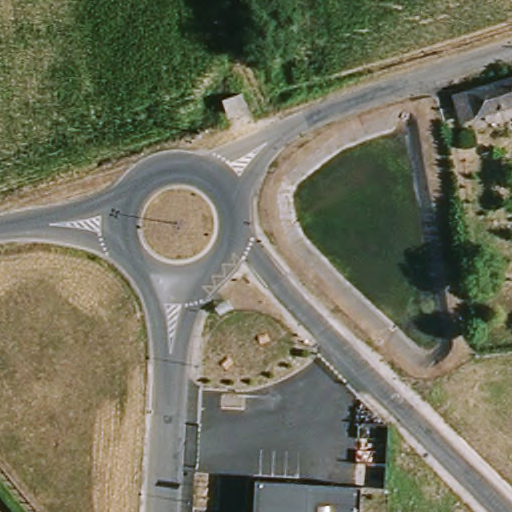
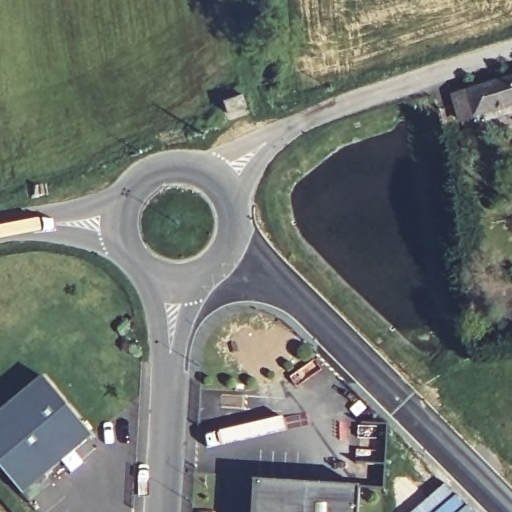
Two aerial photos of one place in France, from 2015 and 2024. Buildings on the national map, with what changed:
unchanged [(451,97),(512,80),(512,106),(473,117),(472,112),(455,116),(451,97)]
unchanged [(219,96),(238,89),(242,101),(223,107),(219,96)]
new [(24,496),(0,468),(0,413),(43,377),(95,437),(24,496)]
unchanged [(256,481),(361,487),(360,512),(255,512),(256,481)]

